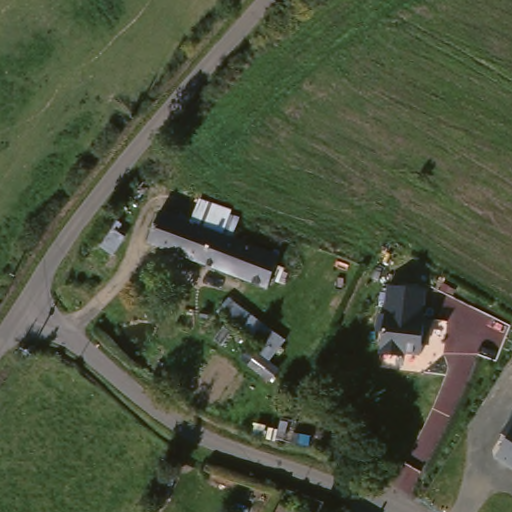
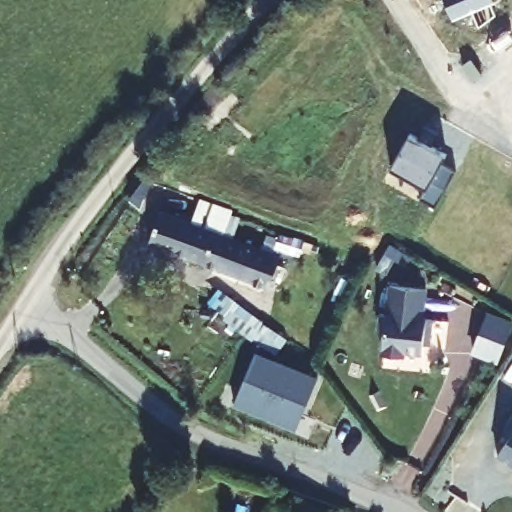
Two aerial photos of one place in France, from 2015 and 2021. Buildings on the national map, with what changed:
new [(500,2),(491,6),(496,17),(480,30),(474,14),(455,22),(446,0),(499,0),(500,2)]
new [(419,141),(423,134),(426,129),(440,137),(436,142),(433,149),(448,157),(443,166),(457,174),(436,211),(420,201),(426,190),(392,171),(411,136),(419,141)]
unchanged [(146,246),(158,215),(190,227),(193,217),(199,205),(231,217),(222,241),(274,260),(262,292),(204,268),(146,246)]
unchanged [(426,293),(422,322),(432,324),(429,342),(423,341),(421,358),(403,356),(403,361),(380,357),(384,335),(378,334),(380,317),(386,317),(390,288),(426,293)]
unchanged [(253,338),(238,327),(225,317),(237,301),(251,312),(266,323),(253,338)]
new [(234,406),(257,352),(319,377),(296,431),(234,406)]
unchanged [(509,437),(503,433),(512,420),(512,467),(497,457),(509,437)]

